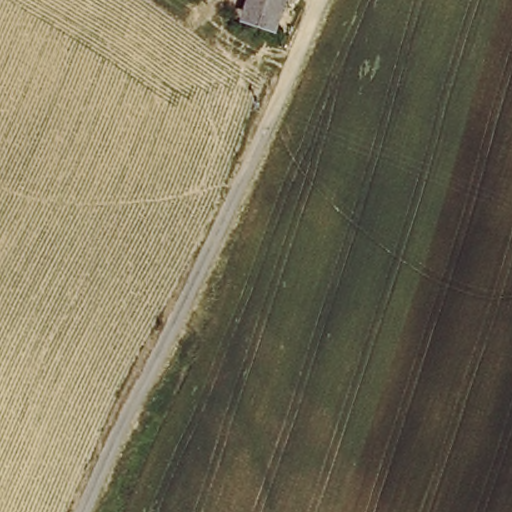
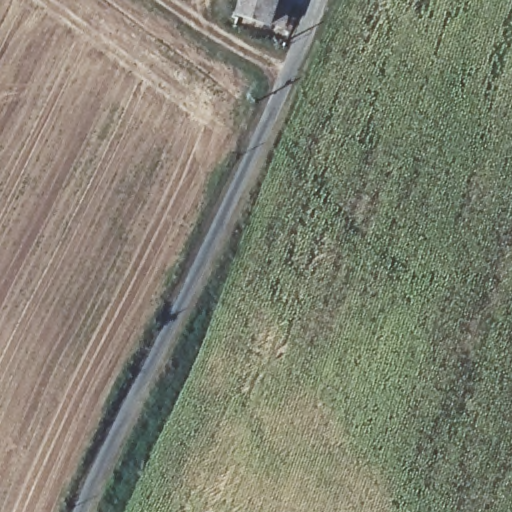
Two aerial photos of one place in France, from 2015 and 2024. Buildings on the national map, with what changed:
unchanged [(243,17),(247,0),(279,0),(273,26),(243,17)]

